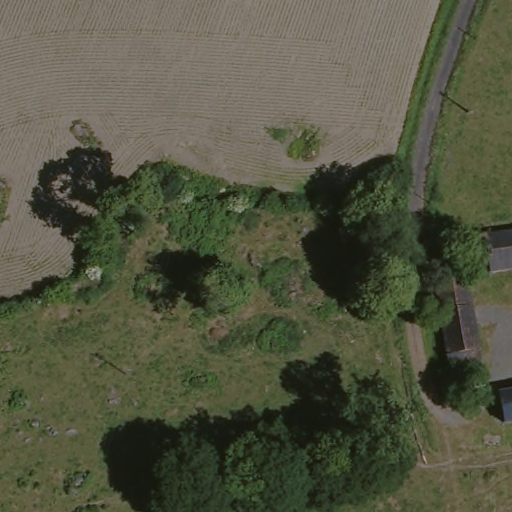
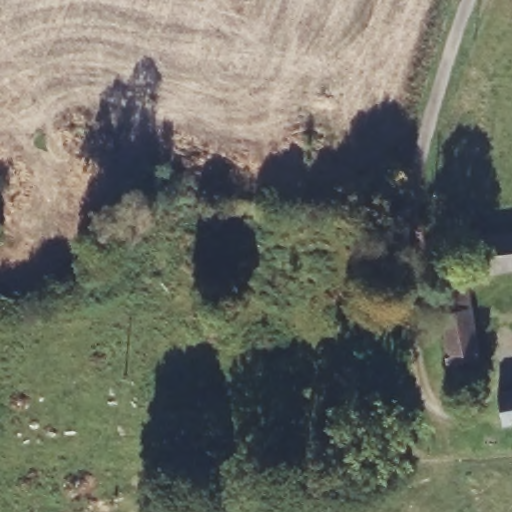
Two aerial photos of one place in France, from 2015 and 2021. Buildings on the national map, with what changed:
unchanged [(485,233),(512,229),(512,265),(492,268),(490,259),(471,262),(466,236),(485,233)]
unchanged [(437,275),(468,270),(481,360),(451,365),(437,275)]
unchanged [(512,390),(512,420),(504,421),(499,392),(512,390)]

